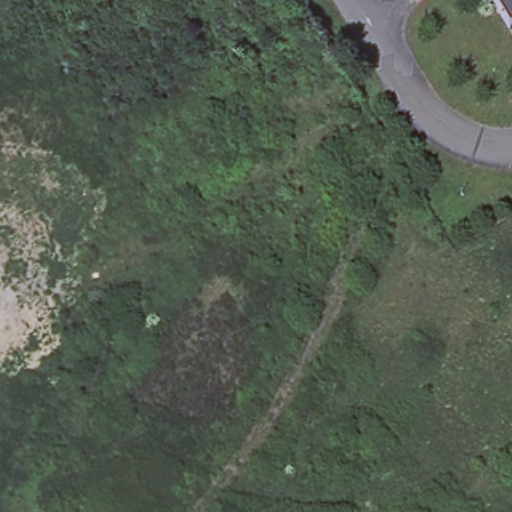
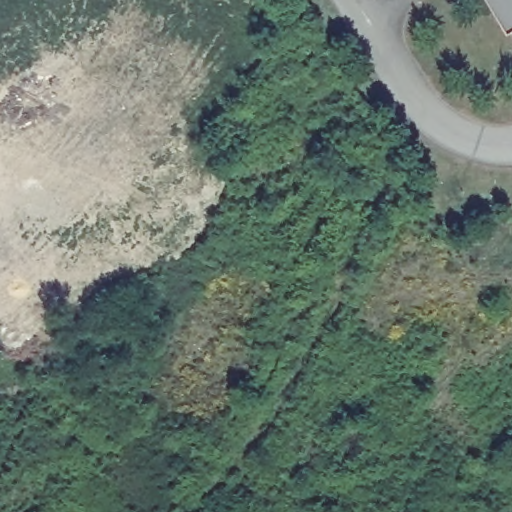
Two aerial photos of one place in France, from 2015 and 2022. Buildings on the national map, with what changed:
unchanged [(489,0),(512,0),(512,28),(507,31),(489,0)]

